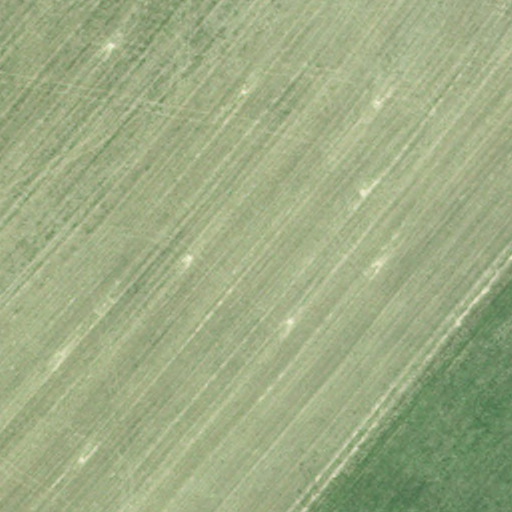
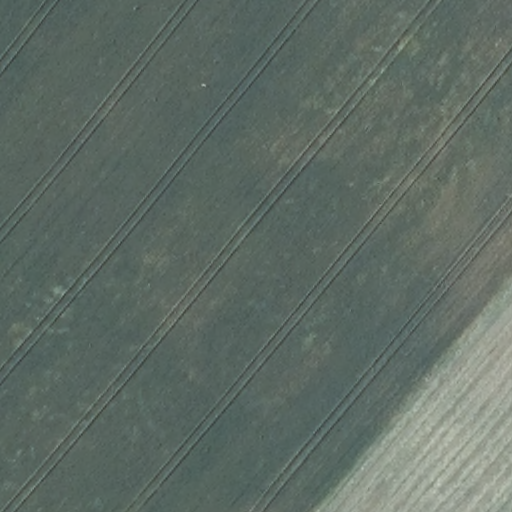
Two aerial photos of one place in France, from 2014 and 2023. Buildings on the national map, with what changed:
[]

